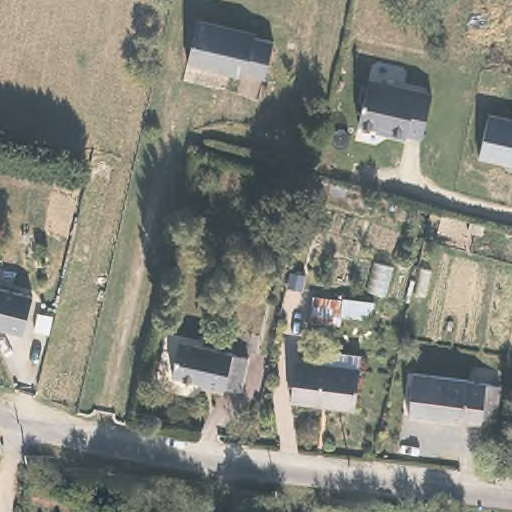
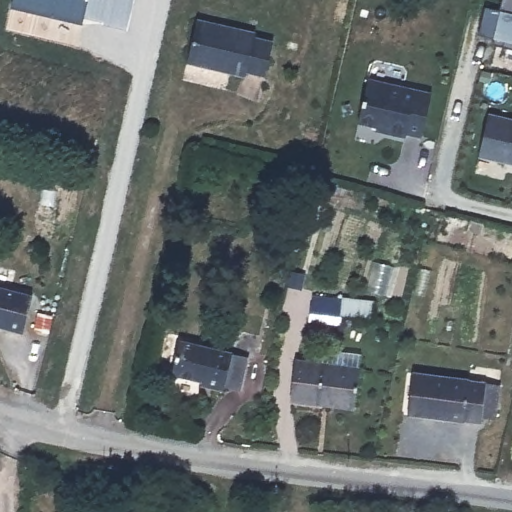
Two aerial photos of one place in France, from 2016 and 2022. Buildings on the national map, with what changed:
new [(81,20),(79,26),(9,10),(11,0),(132,0),(124,32),(100,26),(100,24),(81,20)]
new [(474,36),(481,8),(495,11),(498,0),(512,0),(512,51),(498,48),(488,46),(490,40),(474,36)]
unchanged [(250,35),(248,39),(267,44),(259,78),(241,74),(240,78),(185,67),(194,22),(250,35)]
unchanged [(368,84),(432,98),(421,142),(406,138),(405,142),(387,138),(388,134),(358,127),(368,84)]
unchanged [(512,119),(512,164),(478,156),(488,114),(512,119)]
unchanged [(481,230),(478,238),(462,234),(464,225),(481,230)]
unchanged [(23,332),(5,328),(5,326),(0,325),(0,287),(32,295),(23,332)]
unchanged [(342,298),(373,301),(372,320),(340,318),(340,326),(309,323),(312,296),(342,298)]
unchanged [(178,337),(227,350),(246,355),(238,390),(222,387),(220,390),(199,384),(199,381),(168,374),(178,337)]
unchanged [(351,371),(347,408),(286,400),(291,363),(351,371)]
unchanged [(498,388),(492,422),(478,421),(478,425),(405,414),(412,376),(498,388)]

